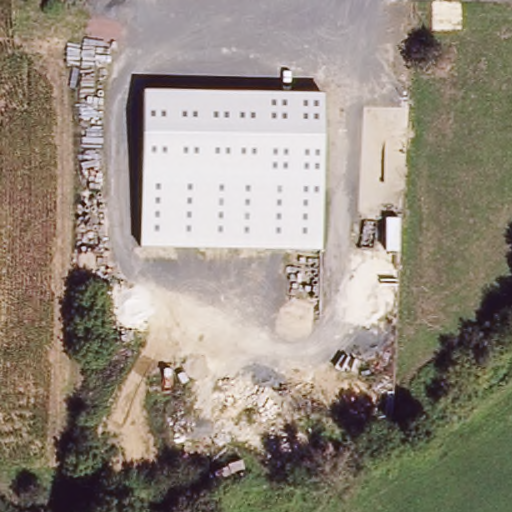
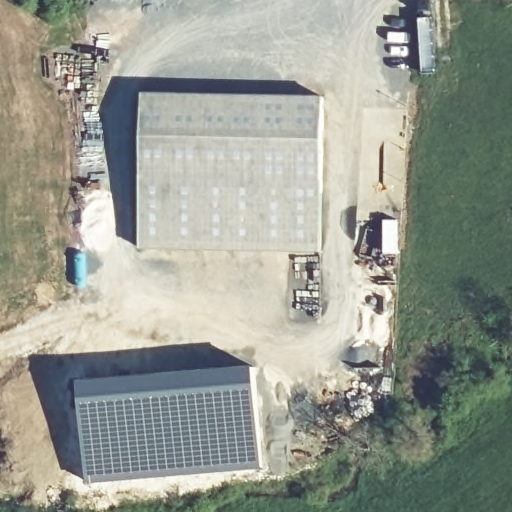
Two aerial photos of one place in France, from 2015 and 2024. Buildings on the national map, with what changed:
unchanged [(142,175),(143,91),(324,94),(322,177),(142,175)]
unchanged [(320,252),(141,248),(142,175),(322,177),(320,252)]
new [(254,364),(265,470),(88,485),(77,378),(254,364)]

